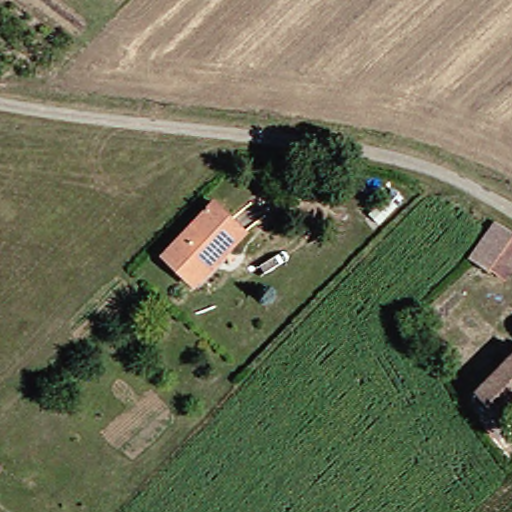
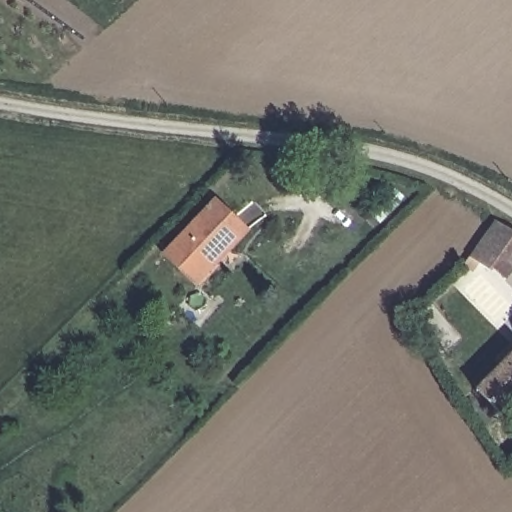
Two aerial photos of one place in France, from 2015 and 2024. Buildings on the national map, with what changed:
unchanged [(192,280),(160,250),(210,196),(242,226),(192,280)]
unchanged [(501,279),(488,270),(487,273),(465,258),(491,221),(512,234),(512,262),(501,279)]
unchanged [(495,415),(472,390),(504,357),(503,356),(499,352),(511,340),(512,342),(512,398),(495,415)]

